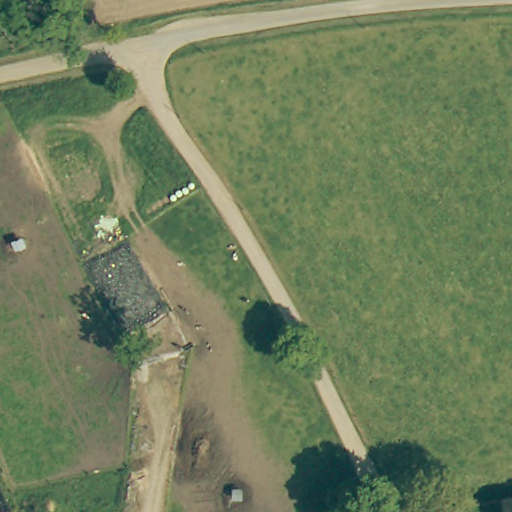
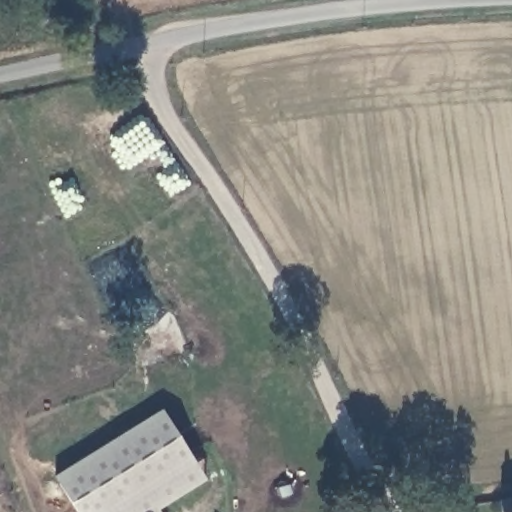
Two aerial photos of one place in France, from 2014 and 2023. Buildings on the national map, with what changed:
new [(207,478),(162,508),(164,512),(79,512),(55,474),(164,406),(207,478)]
unchanged [(512,501),(512,512),(487,512),(486,505),(512,501)]

